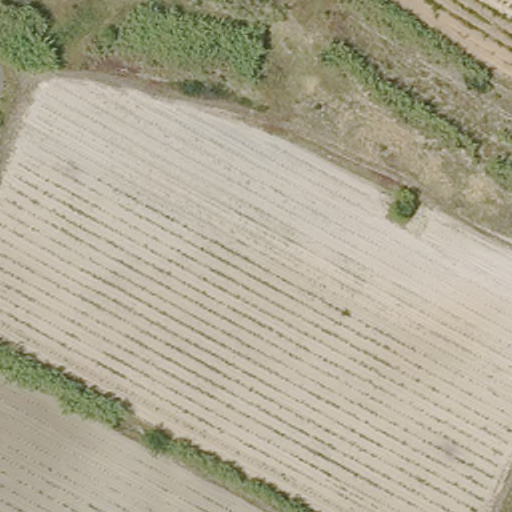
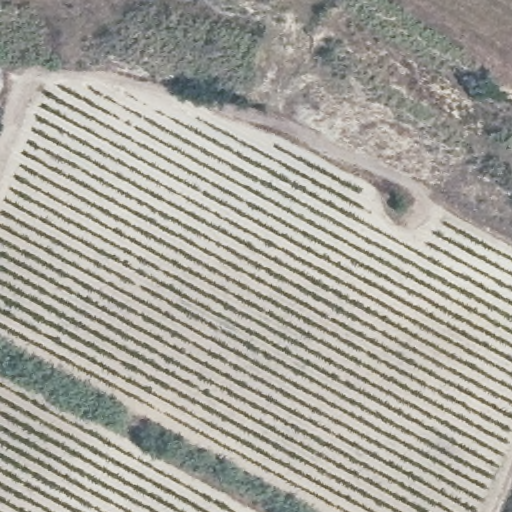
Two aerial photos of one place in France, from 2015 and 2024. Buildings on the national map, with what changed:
[]

